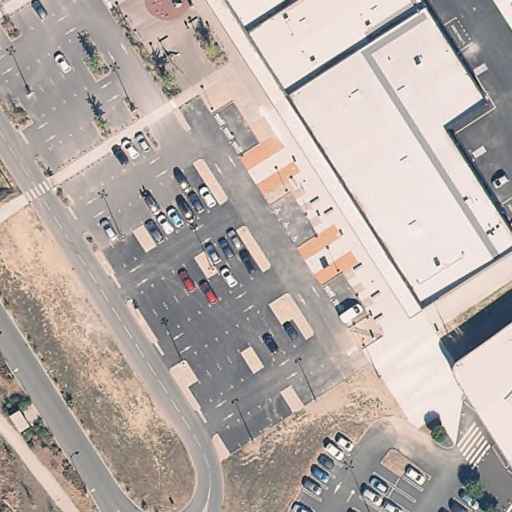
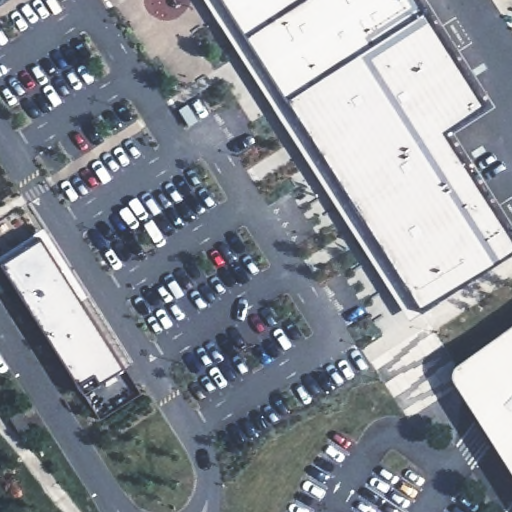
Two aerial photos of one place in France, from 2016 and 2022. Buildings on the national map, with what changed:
unchanged [(423,8),(275,105),(207,0),(418,0),(423,8)]
unchanged [(484,105),(445,130),(512,236),(512,252),(422,309),(408,316),(275,105),(423,8),(484,105)]
new [(42,237),(126,368),(85,395),(1,263),(42,237)]
unchanged [(512,471),(452,377),(453,371),(454,367),(457,365),(512,326),(512,471)]
new [(137,385),(143,394),(101,420),(95,412),(137,385)]

